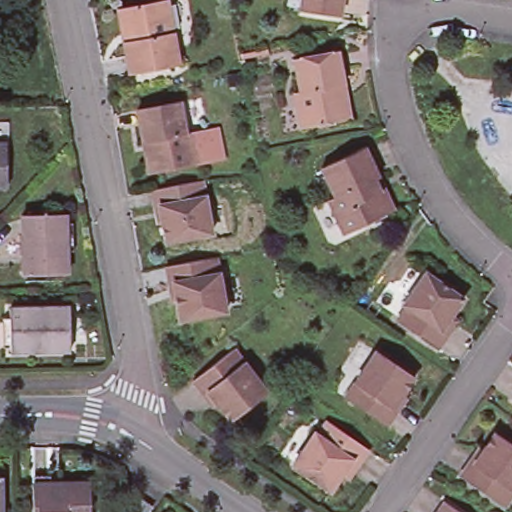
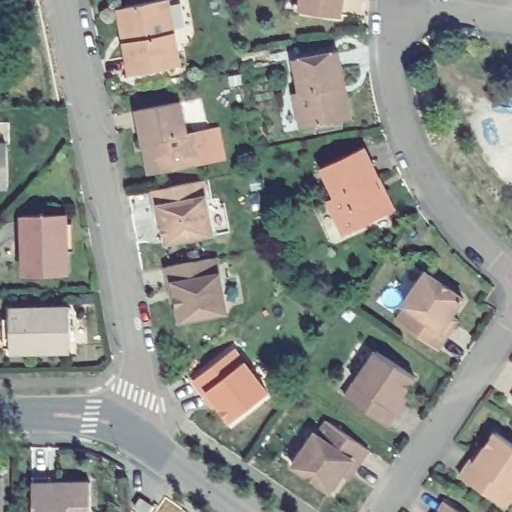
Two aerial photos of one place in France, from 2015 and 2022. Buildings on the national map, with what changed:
unchanged [(131,75),(125,42),(118,9),(125,7),(164,0),(167,0),(180,65),(131,75)]
unchanged [(300,11),(286,9),(287,0),(343,0),(340,17),(300,11)]
unchanged [(345,120),(301,128),(295,93),(301,92),(295,60),(337,52),(344,86),(350,119),(345,120)]
unchanged [(144,144),(137,110),(180,102),(186,134),(192,133),(199,164),(156,172),(150,173),(144,144)]
unchanged [(0,182),(0,139),(12,139),(12,182),(0,182)]
unchanged [(364,147),(379,178),(384,190),(394,211),(349,232),(342,230),(329,200),(335,197),(322,167),(364,147)]
unchanged [(161,202),(157,185),(207,176),(217,229),(172,237),(168,217),(164,217),(161,202)]
unchanged [(66,214),(67,274),(24,276),(22,216),(66,214)]
unchanged [(175,288),(172,272),(222,262),(232,317),(186,326),(182,304),(177,305),(175,288)]
unchanged [(448,335),(437,349),(397,321),(406,307),(403,305),(426,272),(464,299),(452,317),(457,321),(448,335)]
unchanged [(70,307),(71,351),(11,352),(10,308),(70,307)]
unchanged [(397,411),(387,426),(345,397),(377,352),(415,377),(402,395),(407,397),(397,411)]
unchanged [(199,390),(239,360),(272,403),(236,432),(212,402),(209,404),(199,390)]
unchanged [(343,474),(331,492),(292,465),(315,433),(318,435),(327,422),(369,450),(359,465),(349,478),(343,474)]
unchanged [(461,477),(471,462),(480,448),(484,451),(496,433),(512,444),(512,496),(505,507),(461,477)]
unchanged [(7,512),(0,512),(0,472),(6,472),(7,512)]
unchanged [(38,478),(95,477),(96,512),(39,512),(38,478)]
unchanged [(141,498),(152,506),(148,512),(142,512),(135,507),(141,498)]
unchanged [(440,507),(447,512),(436,512),(440,507)]

